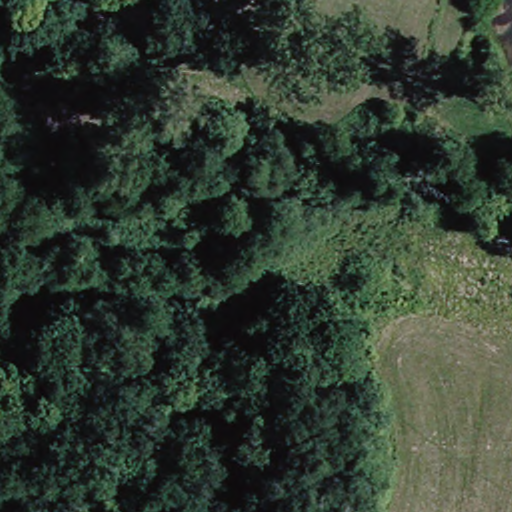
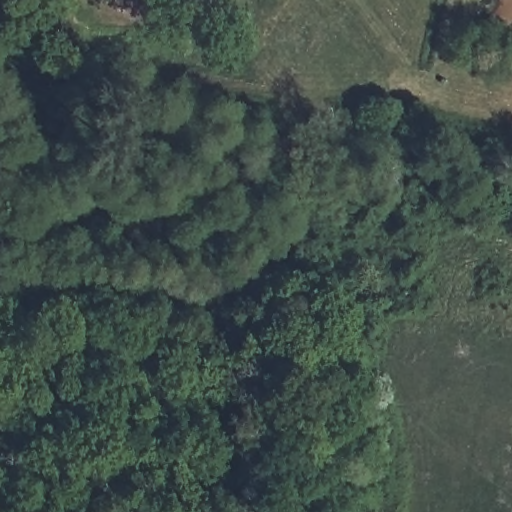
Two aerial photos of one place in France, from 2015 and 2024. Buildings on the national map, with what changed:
unchanged [(95,1),(95,0),(142,0),(136,16),(95,1)]

